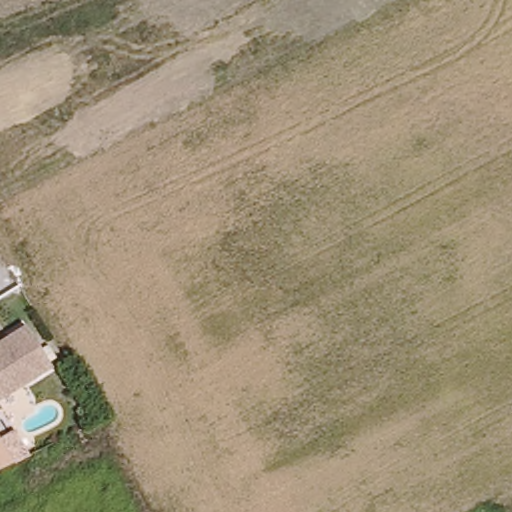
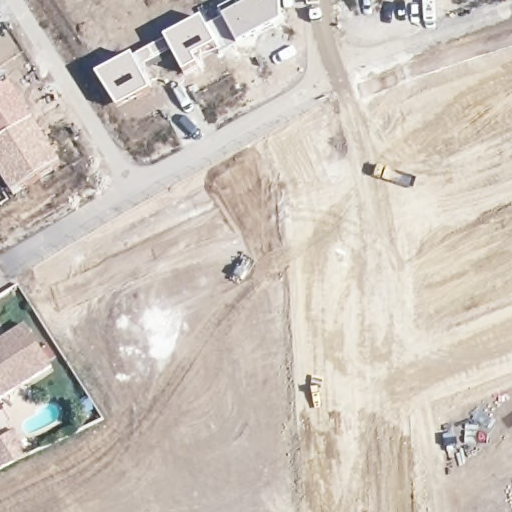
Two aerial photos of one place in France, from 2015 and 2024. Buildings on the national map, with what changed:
new [(219,11),(239,0),(244,9),(259,1),(258,0),(281,0),(282,25),(238,48),(221,57),(217,49),(208,31),(224,20),(219,11)]
new [(117,111),(96,76),(135,56),(163,40),(202,20),(206,28),(217,49),(195,62),(198,68),(183,77),(170,53),(142,69),(153,92),(117,111)]
new [(34,122),(0,142),(0,90),(10,83),(34,122)]
new [(61,164),(12,196),(0,178),(0,142),(34,122),(61,164)]
unchanged [(0,404),(0,347),(28,330),(53,371),(0,404)]
new [(32,459),(16,467),(0,474),(0,445),(2,444),(18,435),(32,459)]

